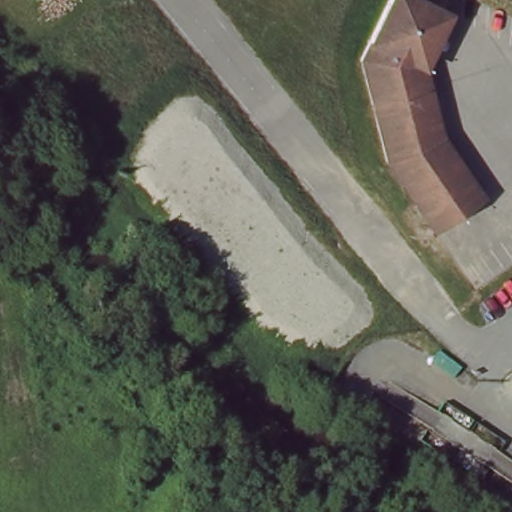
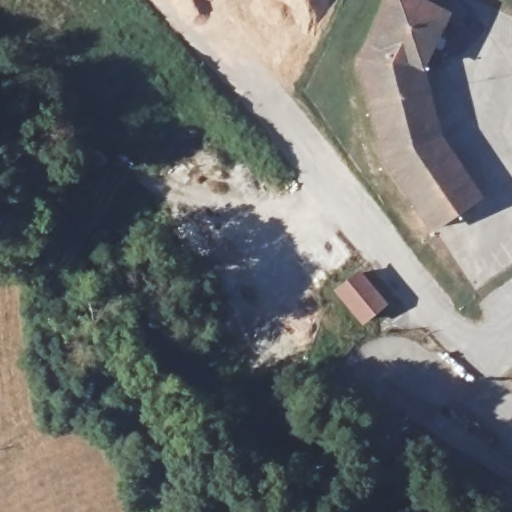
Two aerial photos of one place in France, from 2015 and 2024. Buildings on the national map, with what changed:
unchanged [(446,22),(421,73),(439,145),(476,202),(429,233),(384,166),(360,65),(393,0),(404,0),(446,22)]
new [(388,306),(363,326),(334,291),(359,271),(388,306)]

